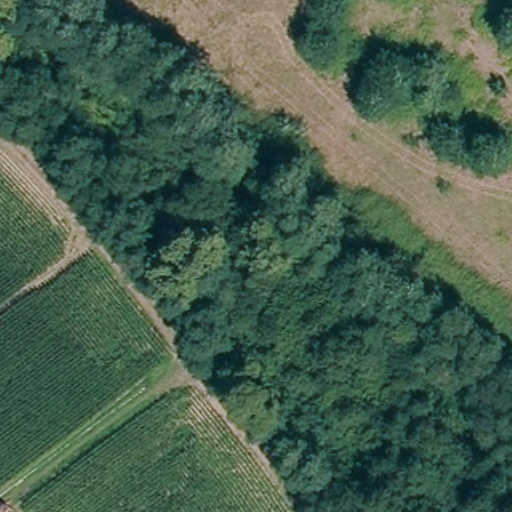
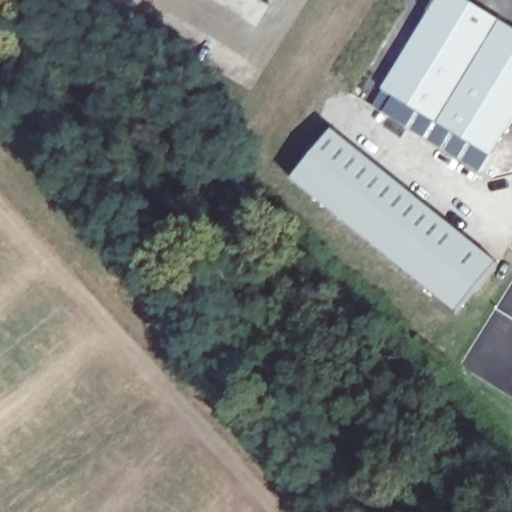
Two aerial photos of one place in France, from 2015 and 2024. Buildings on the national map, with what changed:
new [(512,28),(512,115),(487,155),(381,90),(436,0),(466,0),(512,28)]
new [(497,264),(456,313),(291,181),(333,131),(497,264)]

